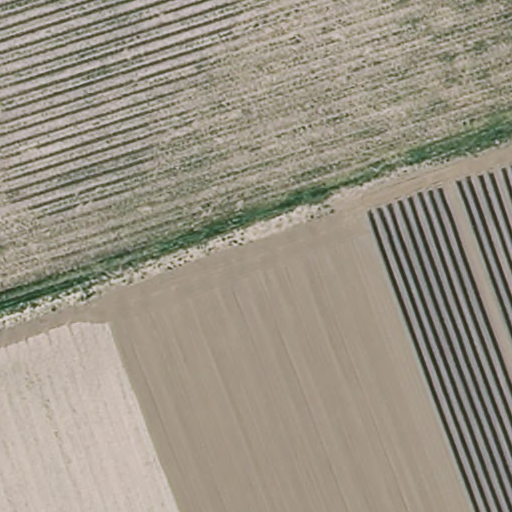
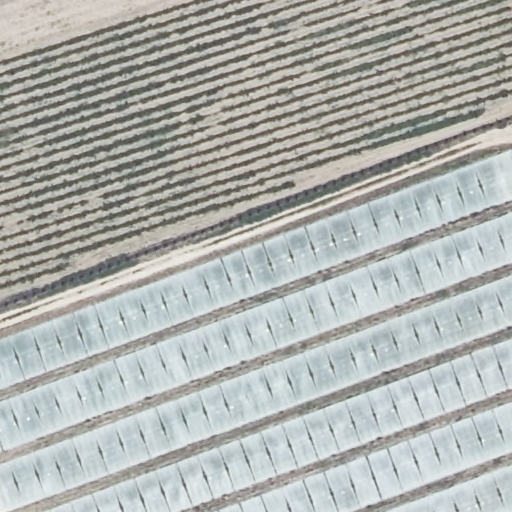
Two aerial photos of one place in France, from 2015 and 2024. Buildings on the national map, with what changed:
new [(0,393),(0,346),(512,156),(512,204),(0,393)]
new [(0,408),(512,217),(512,267),(0,458),(0,408)]
new [(21,512),(0,512),(0,471),(512,280),(512,330),(21,512)]
new [(64,512),(512,344),(512,393),(194,512),(64,512)]
new [(368,512),(229,512),(512,408),(512,459),(368,512)]
new [(404,512),(512,472),(512,512),(404,512)]

